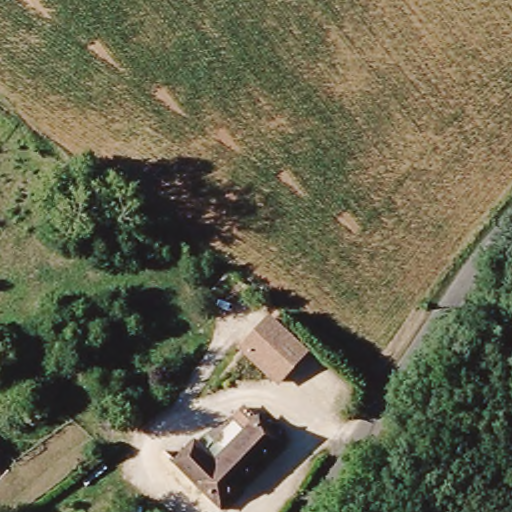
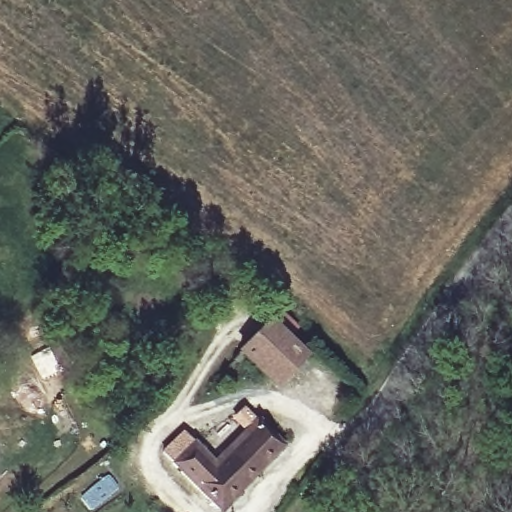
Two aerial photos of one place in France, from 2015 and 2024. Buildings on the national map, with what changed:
unchanged [(309,352),(277,387),(238,351),(269,315),(309,352)]
unchanged [(170,469),(193,443),(216,465),(255,422),(280,447),(220,512),(216,512),(170,469)]

